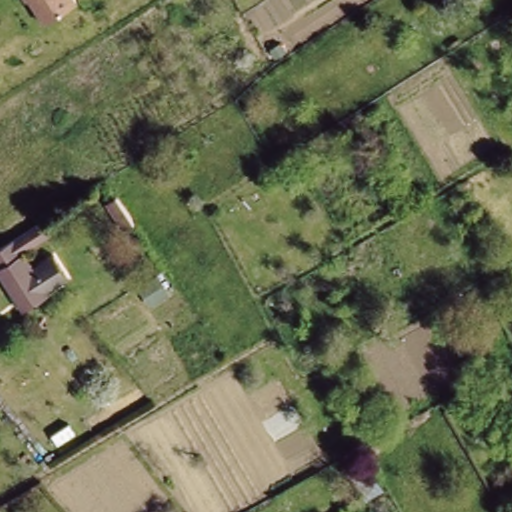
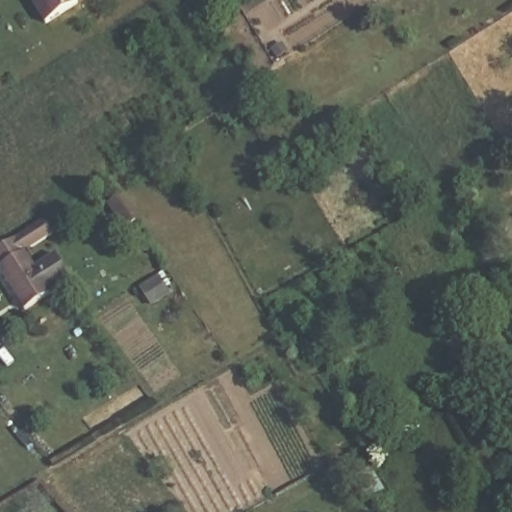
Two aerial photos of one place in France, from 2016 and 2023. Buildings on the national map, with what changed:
unchanged [(44,22),(30,0),(78,0),(78,1),(44,22)]
unchanged [(125,230),(108,204),(120,197),(136,223),(125,230)]
unchanged [(17,313),(0,286),(0,246),(36,223),(45,237),(17,255),(43,296),(17,313)]

